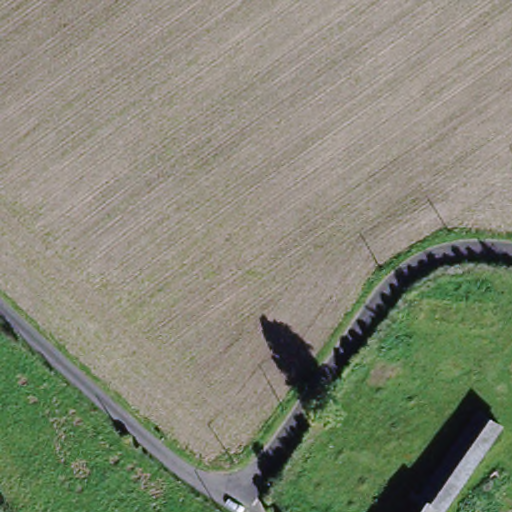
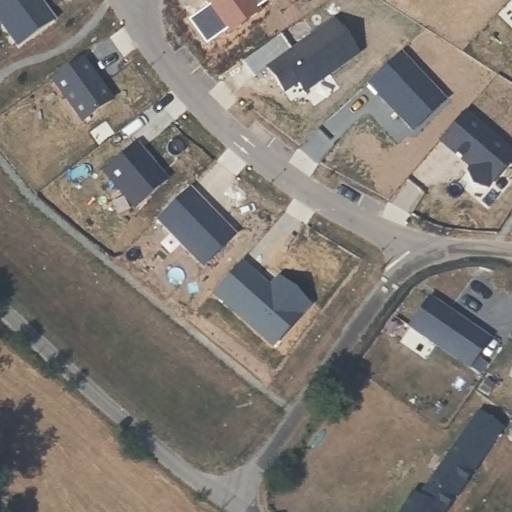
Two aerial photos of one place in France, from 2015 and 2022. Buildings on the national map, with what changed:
new [(203,0),(265,0),(255,6),(258,10),(226,33),(224,30),(204,44),(186,20),(206,5),(203,0)]
new [(512,0),(512,3),(510,0),(512,0)]
new [(331,20),(355,54),(301,91),(295,82),(282,91),(265,68),(331,20)]
new [(397,53),(442,100),(410,130),(365,82),(397,53)]
new [(80,56),(110,99),(80,120),(49,78),(80,56)]
new [(462,112),(512,155),(484,188),(469,185),(465,171),(468,167),(437,141),(462,112)]
new [(134,144),(164,179),(131,206),(101,171),(134,144)]
new [(186,187),(231,235),(200,265),(154,218),(186,187)]
new [(237,261),(272,293),(281,283),(305,305),(270,345),(210,292),(237,261)]
new [(490,337),(469,370),(408,326),(430,295),(490,337)]
demolished [(501,307),(497,333),(410,321),(416,296),(501,307)]
unchanged [(413,501),(420,506),(482,411),(501,424),(444,512),(406,512),(413,501)]

